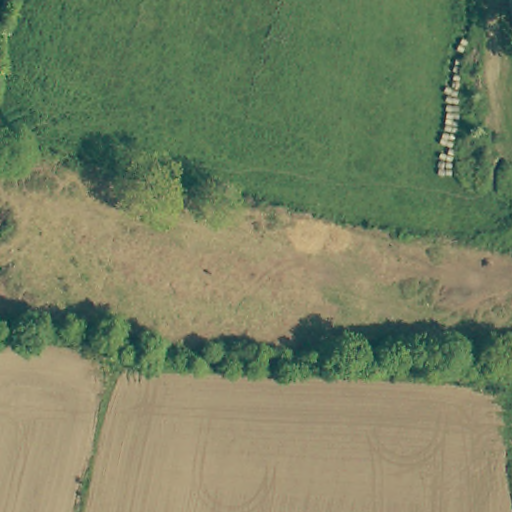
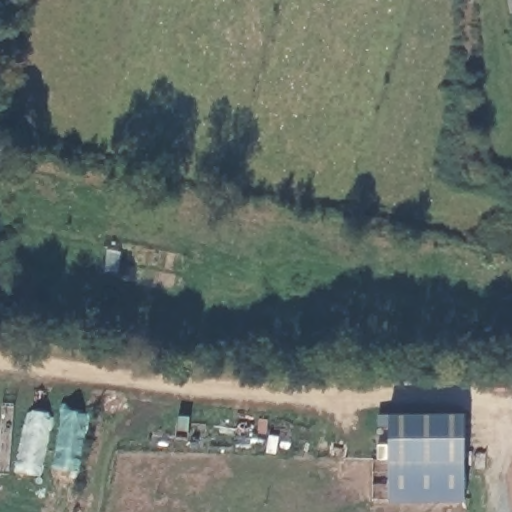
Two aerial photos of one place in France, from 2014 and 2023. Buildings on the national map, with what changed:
new [(390,413),(466,411),(466,500),(390,500),(390,413)]

